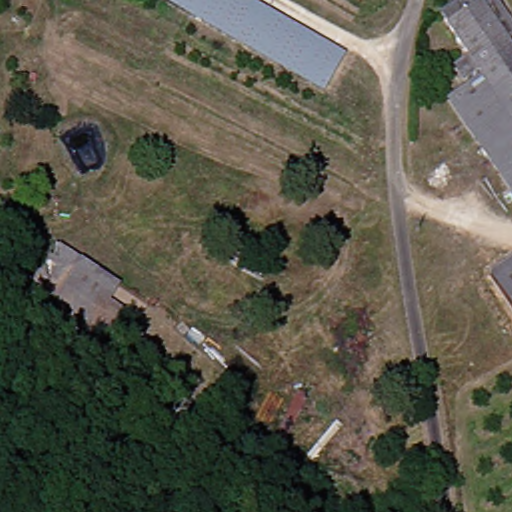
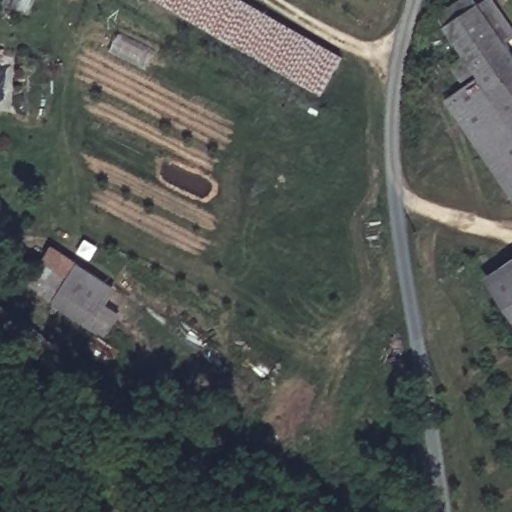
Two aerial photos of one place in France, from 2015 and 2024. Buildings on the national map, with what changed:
unchanged [(151,0),(239,0),(342,56),(322,94),(151,0)]
unchanged [(512,57),(512,200),(446,104),(465,90),(452,71),(466,61),(438,20),(468,0),(473,0),(478,9),(491,0),(512,31),(512,44),(506,49),(512,57)]
unchanged [(59,239),(119,278),(109,293),(124,303),(117,314),(111,322),(36,272),(42,265),(59,239)]
unchanged [(488,276),(512,261),(512,311),(488,276)]
unchanged [(39,331),(55,344),(44,356),(0,319),(0,303),(27,326),(39,331)]

